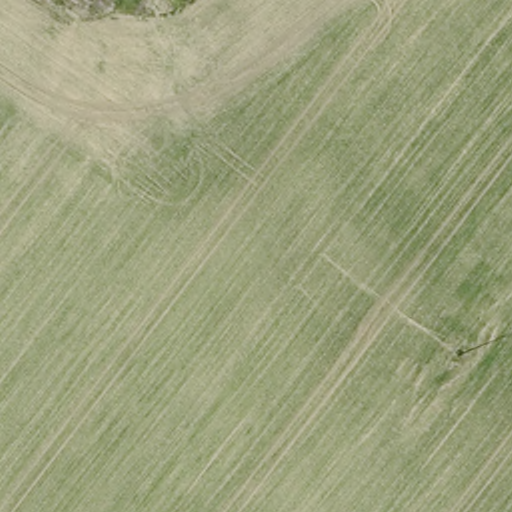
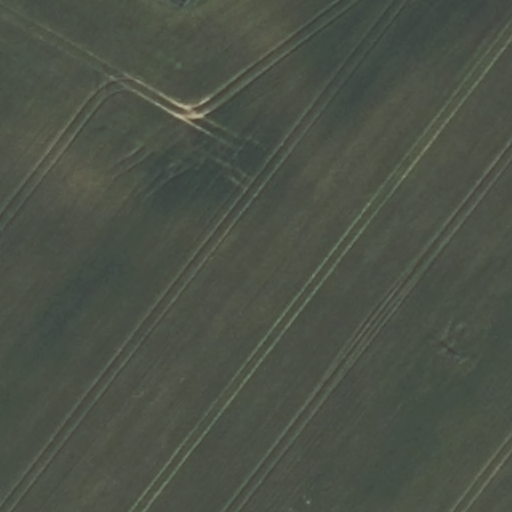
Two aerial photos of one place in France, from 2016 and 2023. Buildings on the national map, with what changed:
[]

